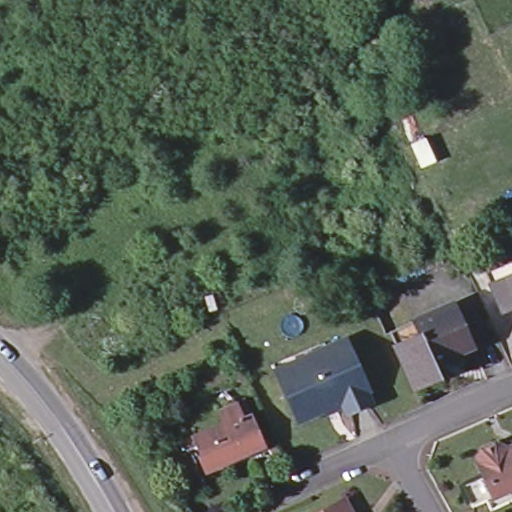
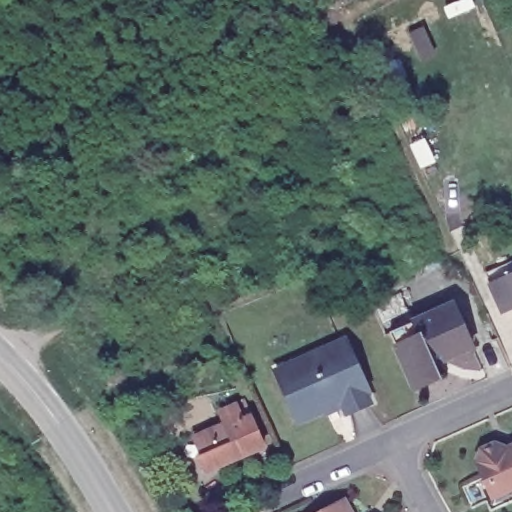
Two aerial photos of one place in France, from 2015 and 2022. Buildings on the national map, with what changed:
unchanged [(487,274),(504,267),(512,263),(512,307),(503,312),(487,274)]
unchanged [(412,384),(395,347),(389,332),(414,321),(453,304),(472,347),(454,356),(435,365),(439,372),(441,377),(415,390),(412,384)]
unchanged [(368,387),(365,388),(370,398),(346,408),(342,398),(299,417),(279,373),(275,366),(295,358),(346,336),(368,387)]
unchanged [(220,417),(245,406),(265,450),(242,460),(242,459),(222,468),(223,469),(205,477),(198,462),(202,461),(194,444),(226,429),(220,417)]
unchanged [(490,444),(502,449),(512,444),(512,488),(494,496),(488,484),(485,485),(484,482),(479,484),(470,465),(475,451),(490,444)]
unchanged [(338,501),(344,512),(318,512),(338,501)]

